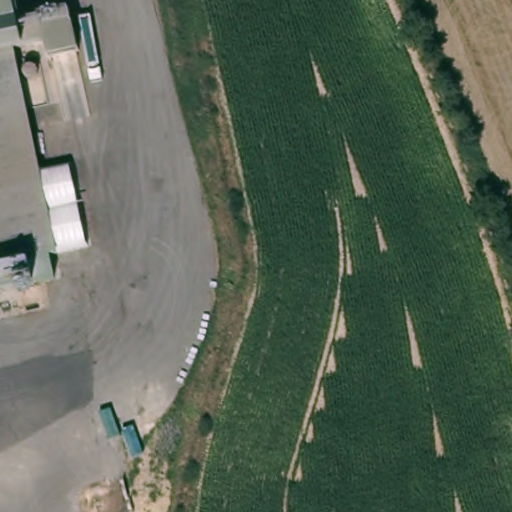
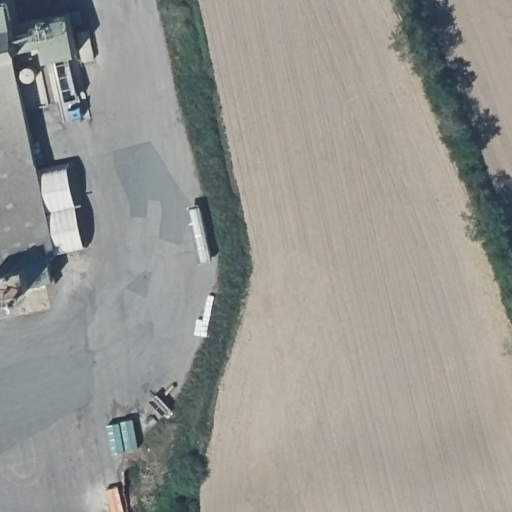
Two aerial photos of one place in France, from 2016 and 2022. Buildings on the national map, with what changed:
unchanged [(17,24),(69,13),(76,50),(47,56),(44,43),(11,49),(0,55),(0,0),(13,0),(17,24)]
unchanged [(15,59),(56,257),(25,263),(28,285),(0,293),(0,61),(15,59)]

